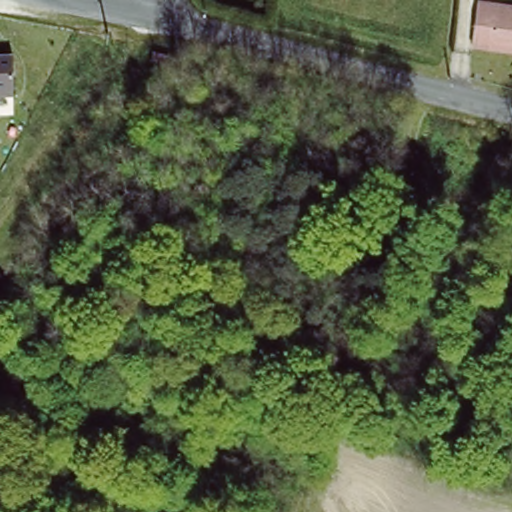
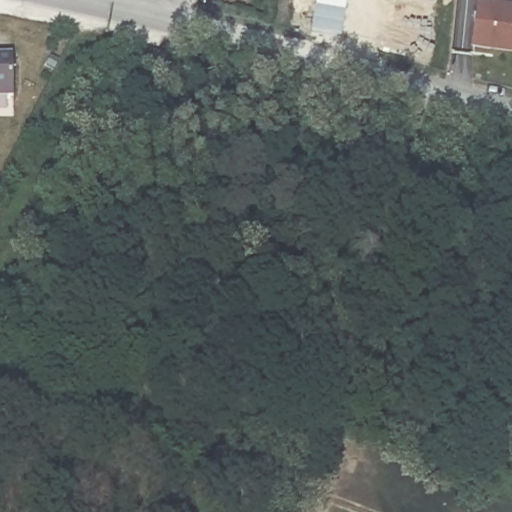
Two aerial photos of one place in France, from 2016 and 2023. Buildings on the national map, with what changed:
unchanged [(479,1),(512,6),(512,50),(473,44),(479,1)]
unchanged [(12,52),(14,94),(0,94),(0,53),(12,52)]

